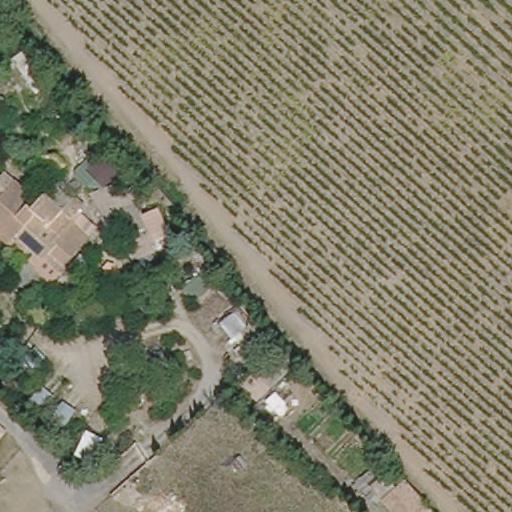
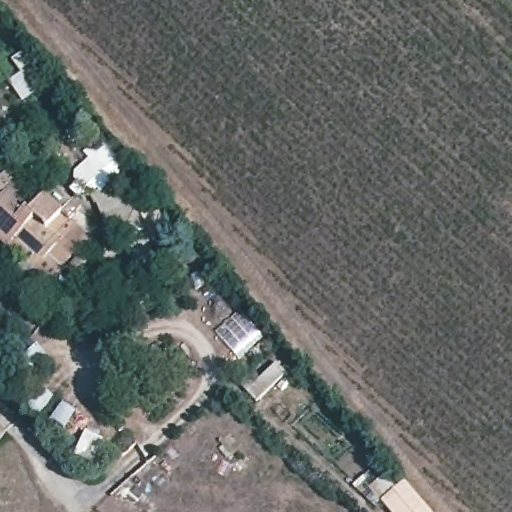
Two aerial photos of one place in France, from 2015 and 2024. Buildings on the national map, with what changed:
unchanged [(57,157),(67,167),(54,173),(42,174),(30,169),(38,158),(57,157)]
unchanged [(115,181),(123,196),(137,187),(155,221),(135,231),(122,212),(106,220),(93,196),(115,181)]
unchanged [(67,216),(78,204),(88,212),(77,225),(95,241),(67,272),(53,261),(25,293),(13,282),(28,265),(0,239),(0,210),(20,187),(43,207),(49,200),(67,216)]
unchanged [(382,496),(405,476),(436,512),(395,512),(382,496)]

